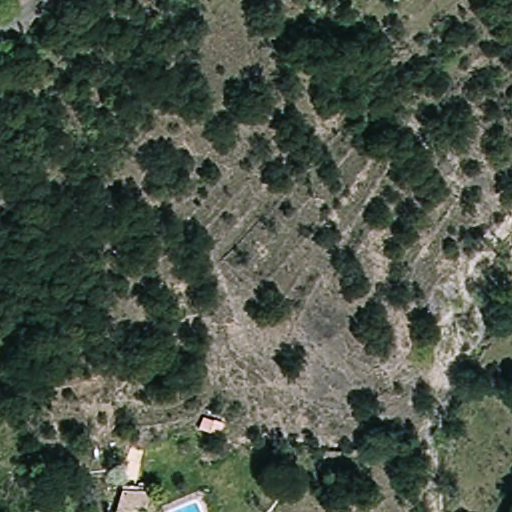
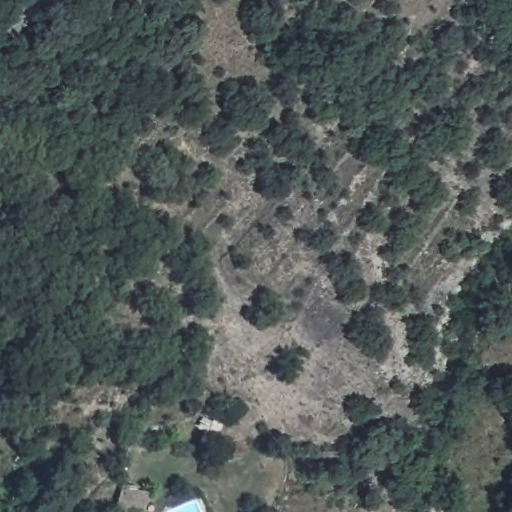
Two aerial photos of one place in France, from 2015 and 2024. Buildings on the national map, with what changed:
[]

